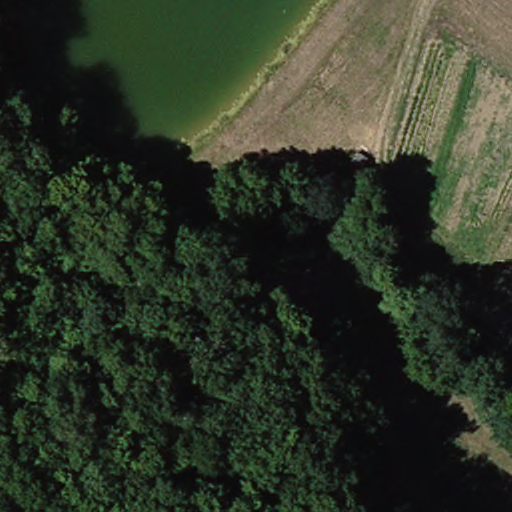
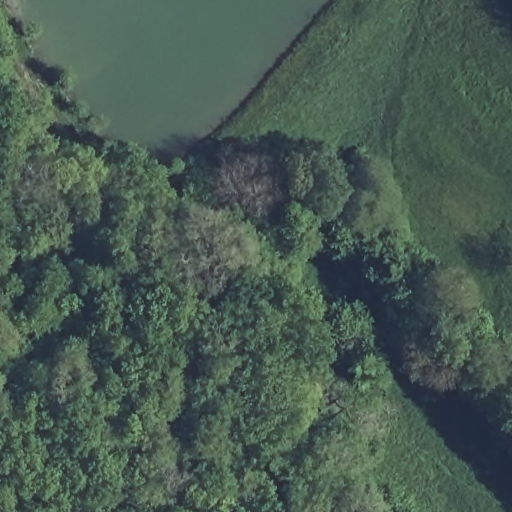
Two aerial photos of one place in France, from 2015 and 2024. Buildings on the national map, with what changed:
unchanged [(350,145),(360,155),(352,163),(342,154),(350,145)]

